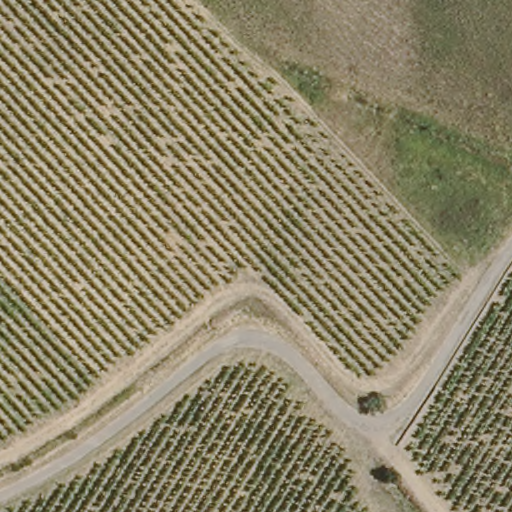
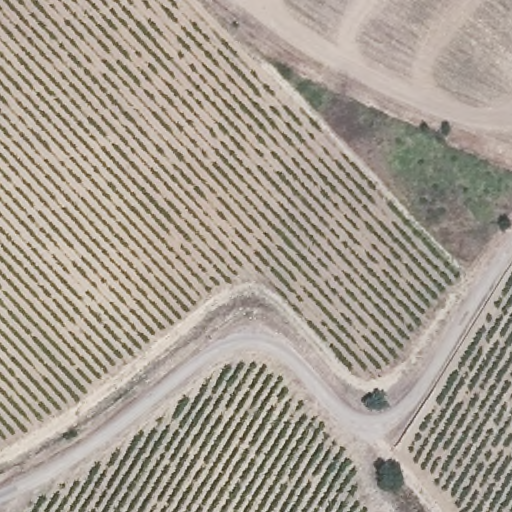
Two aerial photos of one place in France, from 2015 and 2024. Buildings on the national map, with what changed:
[]

